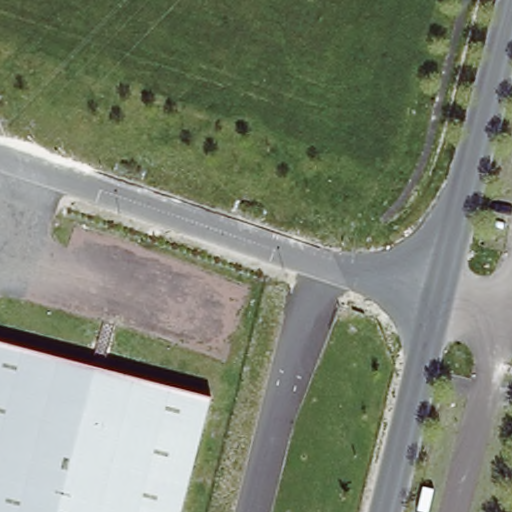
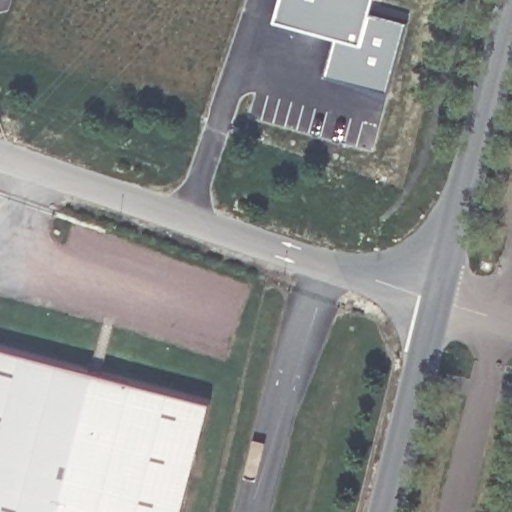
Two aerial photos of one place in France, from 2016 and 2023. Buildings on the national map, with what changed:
new [(280,0),(374,0),(371,11),(409,22),(390,93),(324,75),(335,35),(275,19),(280,0)]
unchanged [(0,512),(0,351),(45,362),(8,512),(0,512)]
unchanged [(205,402),(176,512),(8,512),(45,362),(205,402)]

